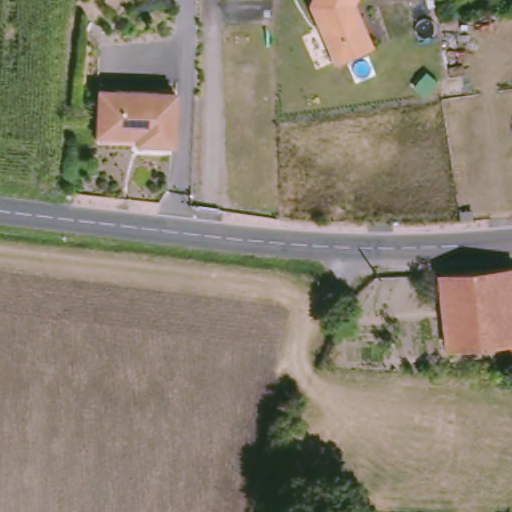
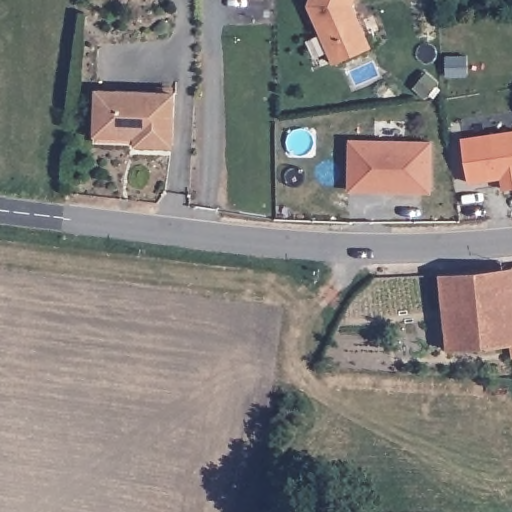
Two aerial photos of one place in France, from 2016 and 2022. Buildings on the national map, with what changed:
unchanged [(344,8),(347,14),(350,12),(356,27),(364,46),(334,59),(320,31),(305,2),(305,0),(347,0),(344,8)]
unchanged [(94,129),(96,92),(173,95),(172,147),(135,147),(135,138),(94,137),(94,129)]
new [(501,179),(470,183),(462,137),(512,130),(512,187),(502,189),(501,179)]
new [(348,192),(349,140),(432,141),(432,193),(348,192)]
unchanged [(512,345),(450,351),(441,273),(512,267),(512,345)]

